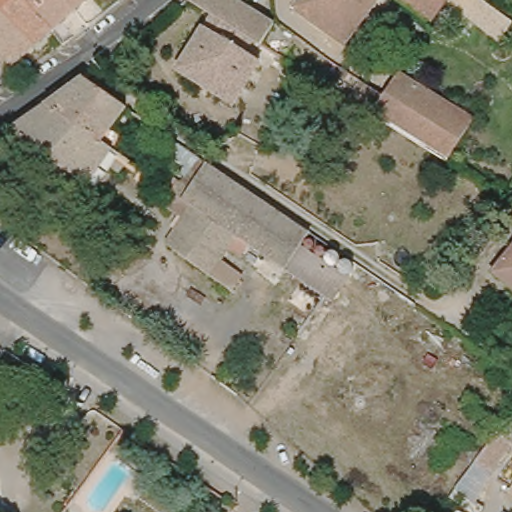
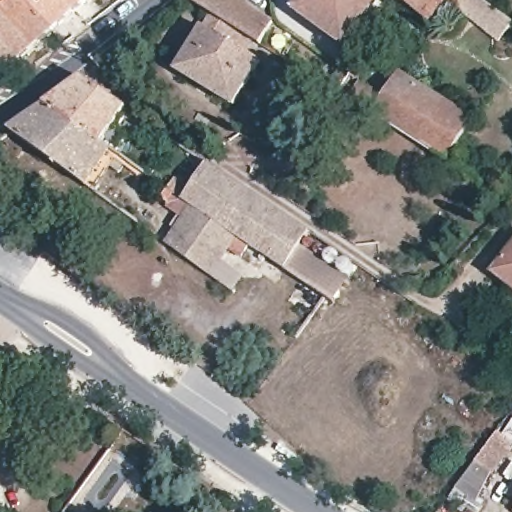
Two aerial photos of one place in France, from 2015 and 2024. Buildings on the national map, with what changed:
unchanged [(5,73),(0,68),(0,0),(33,0),(58,26),(5,73)]
unchanged [(88,0),(58,26),(33,0),(88,0)]
unchanged [(196,0),(244,0),(275,19),(261,40),(196,0)]
unchanged [(294,10),(301,0),(380,0),(346,48),(294,10)]
unchanged [(400,0),(449,0),(433,23),(400,0)]
unchanged [(499,41),(449,0),(482,0),(512,21),(512,23),(499,41)]
unchanged [(239,106),(181,70),(208,26),(266,62),(239,106)]
unchanged [(342,88),(332,81),(341,66),(351,73),(342,88)]
unchanged [(475,118),(447,160),(372,114),(348,99),(361,79),(384,95),(400,71),(475,118)]
unchanged [(97,139),(41,101),(80,74),(122,103),(97,139)]
unchanged [(97,139),(107,146),(83,182),(5,126),(41,101),(97,139)]
unchanged [(311,228),(303,240),(287,264),(263,248),(183,194),(207,158),(311,228)]
unchanged [(211,271),(166,239),(183,214),(167,203),(176,189),(183,194),(263,248),(254,260),(230,244),(221,256),(236,267),(226,282),(211,271)]
unchanged [(351,273),(336,297),(326,290),(287,264),(303,240),(351,273)]
unchanged [(492,268),(512,242),(512,283),(492,268)]

